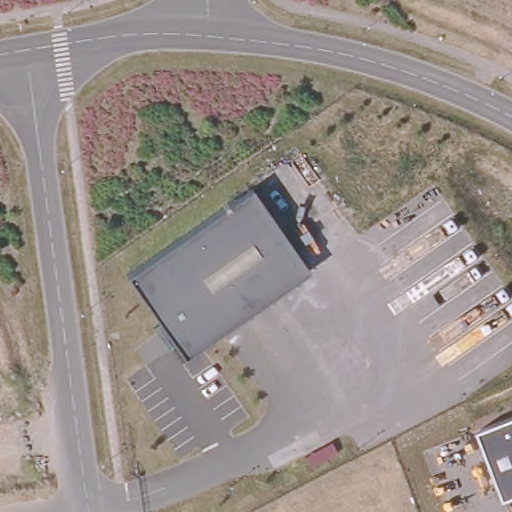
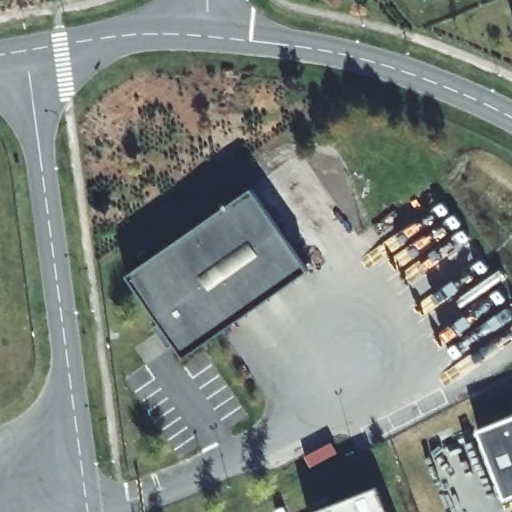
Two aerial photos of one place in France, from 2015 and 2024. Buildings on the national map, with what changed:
unchanged [(181,357),(123,275),(250,188),(305,268),(181,357)]
unchanged [(477,430),(512,416),(512,493),(504,496),(477,430)]
new [(390,512),(311,512),(380,485),(390,512)]

